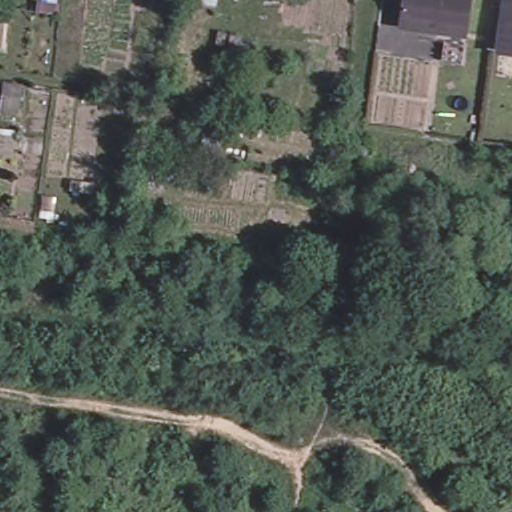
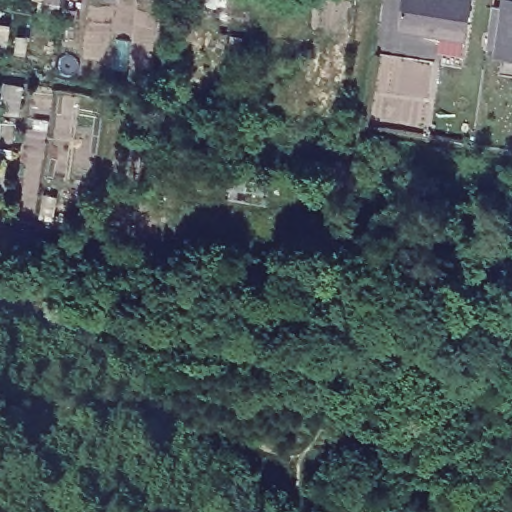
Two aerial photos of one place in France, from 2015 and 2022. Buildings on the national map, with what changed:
unchanged [(476,0),(472,34),(407,24),(410,0),(476,0)]
unchanged [(512,3),(512,49),(501,47),(487,45),(492,4),(507,6),(507,2),(512,3)]

